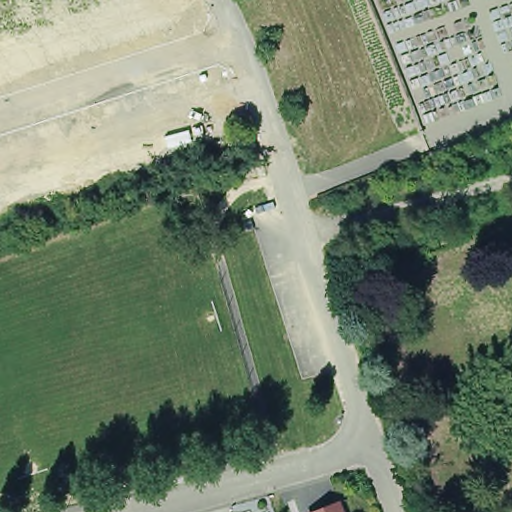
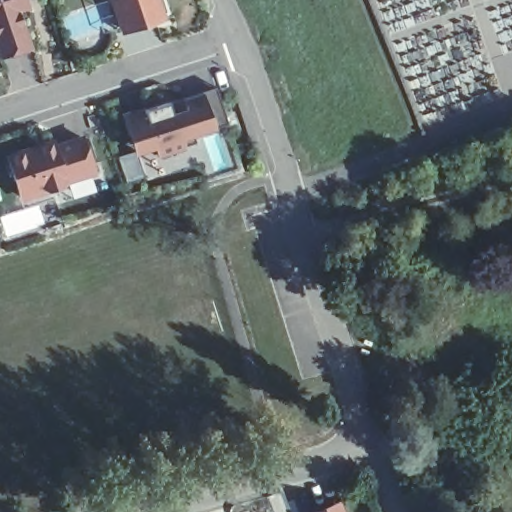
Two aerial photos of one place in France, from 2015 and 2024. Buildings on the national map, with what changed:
new [(26,7),(18,10),(30,47),(2,56),(0,57),(0,0),(28,0),(30,6),(26,7)]
new [(126,26),(117,0),(165,0),(169,12),(126,26)]
new [(135,145),(125,116),(170,101),(170,105),(217,90),(228,123),(193,135),(196,142),(158,154),(155,146),(137,153),(135,145)]
new [(25,151),(38,147),(38,149),(57,142),(58,146),(83,138),(95,172),(64,181),(61,186),(48,190),(43,188),(20,196),(8,158),(25,153),(25,151)]
unchanged [(340,503),(344,512),(317,512),(340,503)]

